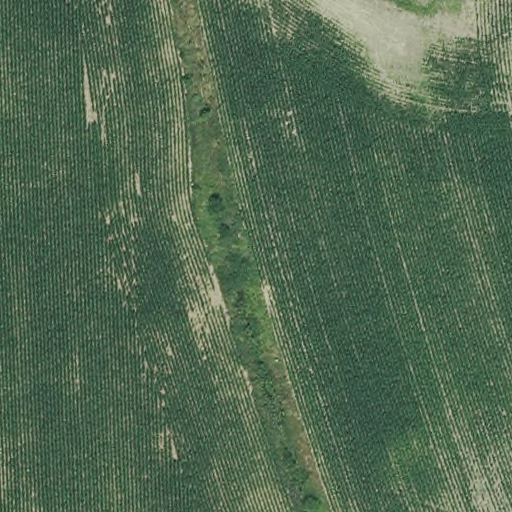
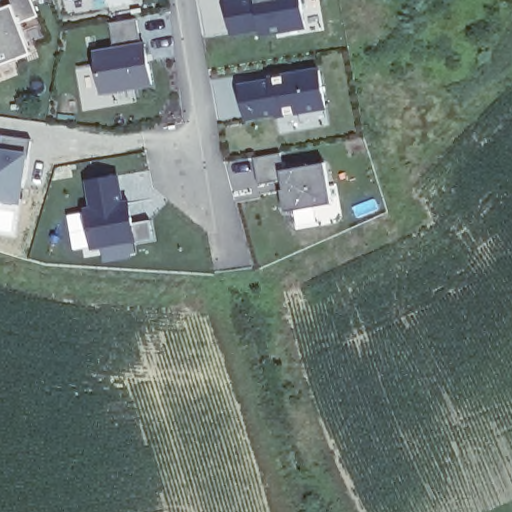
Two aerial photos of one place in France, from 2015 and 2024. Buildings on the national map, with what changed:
new [(22,25),(33,54),(0,67),(0,10),(4,9),(0,0),(33,0),(39,16),(22,25)]
new [(301,0),(302,31),(226,39),(219,1),(222,0),(301,0)]
new [(102,95),(94,50),(116,46),(111,23),(136,19),(140,42),(147,41),(154,86),(102,95)]
new [(327,111),(276,119),(276,116),(245,121),(239,84),(269,79),(268,76),(320,68),(327,111)]
new [(22,205),(0,201),(0,146),(1,146),(2,136),(31,140),(29,153),(22,205)]
new [(286,212),(283,191),(280,182),(259,185),(255,159),(281,155),(282,170),(325,163),(332,204),(286,212)]
new [(136,244),(92,251),(85,209),(91,207),(87,182),(122,176),(126,202),(131,201),(135,222),(151,220),(155,239),(136,244)]

